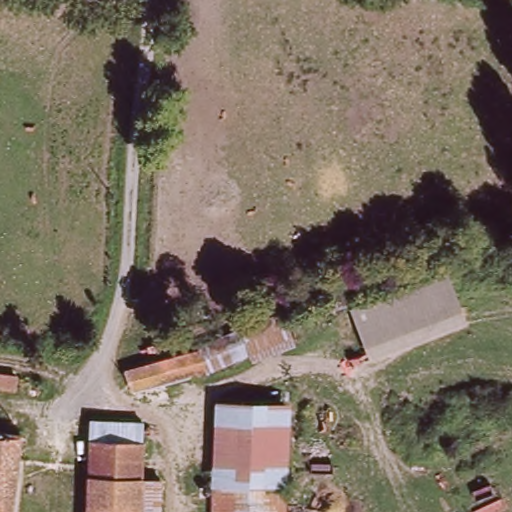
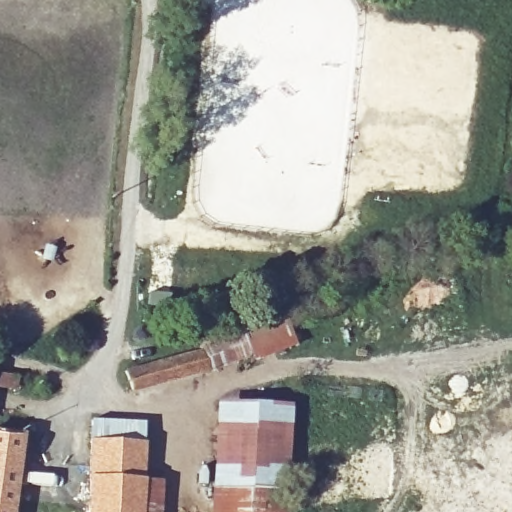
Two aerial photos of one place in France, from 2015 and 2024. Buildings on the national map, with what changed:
demolished [(465,318),(371,354),(356,317),(448,281),(465,318)]
unchanged [(242,330),(286,317),(297,351),(255,364),(253,356),(207,376),(133,395),(125,371),(242,330)]
unchanged [(18,389),(0,387),(0,374),(19,376),(18,389)]
unchanged [(218,512),(218,487),(227,488),(229,404),(282,406),(279,489),(290,490),(289,512),(218,512)]
unchanged [(144,423),(143,477),(161,481),(161,512),(94,512),(96,421),(144,423)]
unchanged [(12,512),(0,512),(0,434),(19,436),(12,512)]

